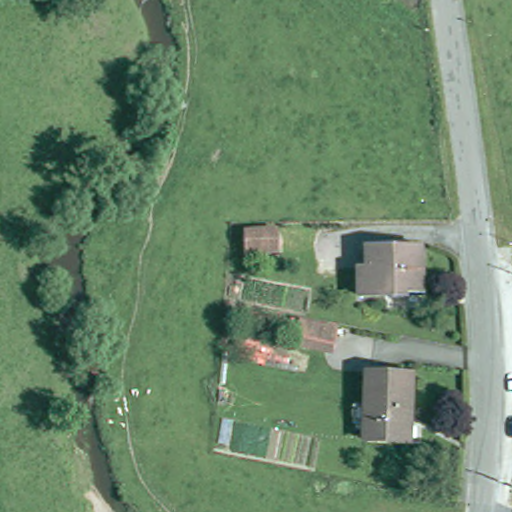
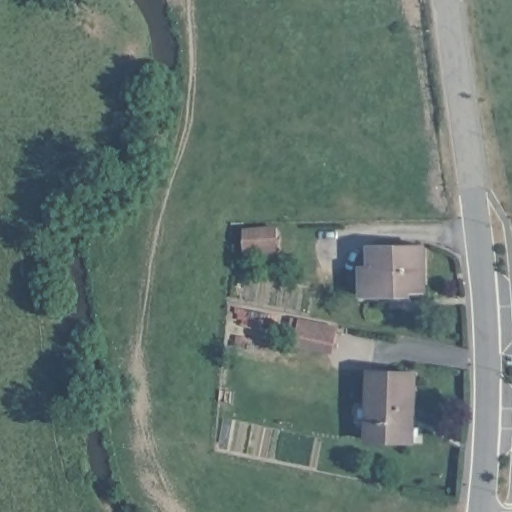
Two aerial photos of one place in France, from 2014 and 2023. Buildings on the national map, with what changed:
unchanged [(277,250),(246,252),(245,231),(275,229),(277,250)]
unchanged [(401,295),(364,296),(364,268),(372,268),(372,246),(424,246),(424,290),(407,290),(408,295),(401,295)]
unchanged [(294,354),(301,321),(335,328),(328,362),(294,354)]
unchanged [(360,427),(362,408),(374,408),(375,376),(418,378),(417,447),(373,445),(374,428),(360,427)]

